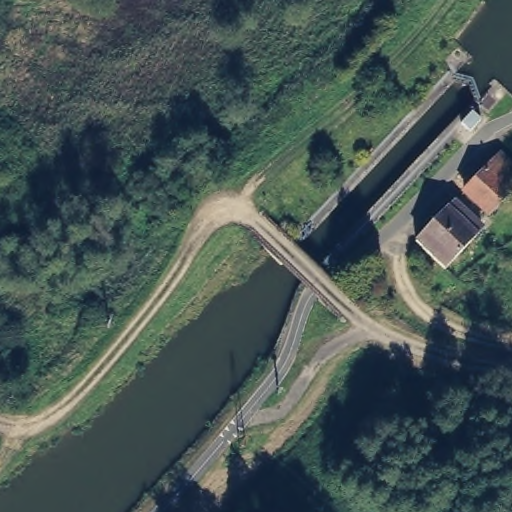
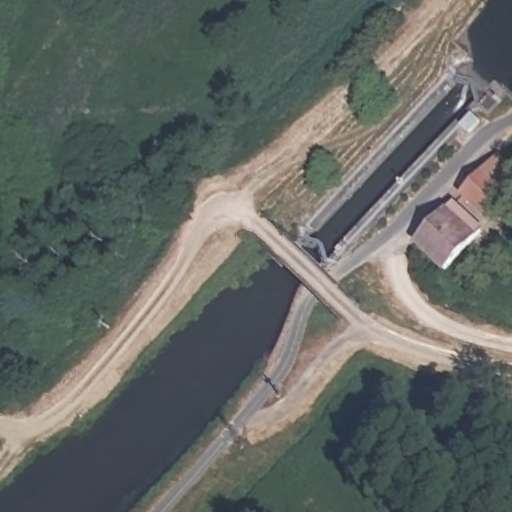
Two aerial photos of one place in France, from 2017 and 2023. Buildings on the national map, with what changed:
unchanged [(512,173),(512,193),(486,220),(463,197),(500,161),(512,173)]
unchanged [(478,228),(441,260),(422,239),(455,208),(478,228)]

